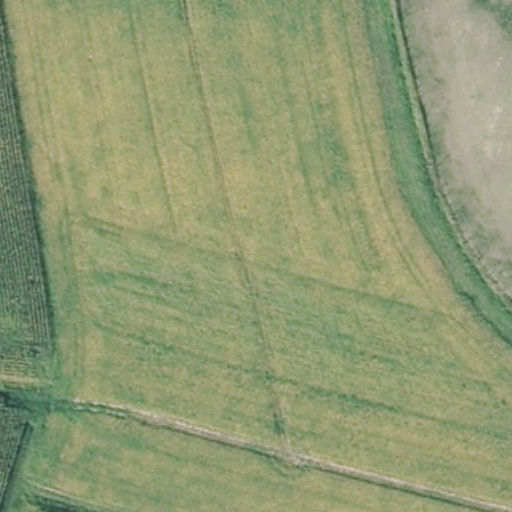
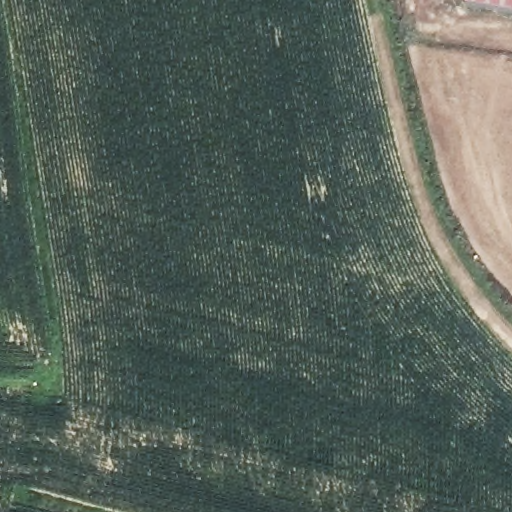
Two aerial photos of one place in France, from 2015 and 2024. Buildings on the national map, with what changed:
new [(467,5),(468,0),(512,0),(512,13),(467,5)]

